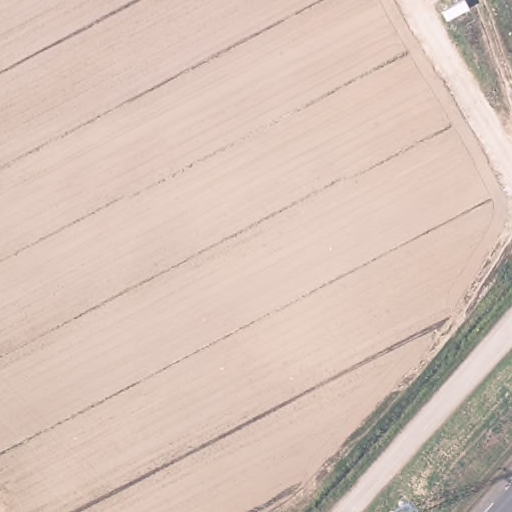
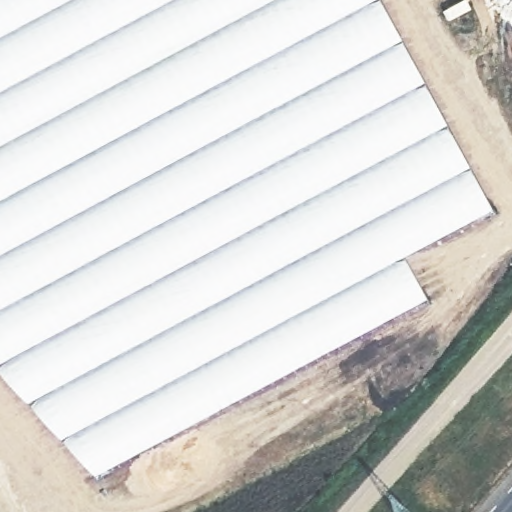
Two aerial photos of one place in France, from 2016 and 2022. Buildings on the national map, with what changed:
new [(493,206),(406,253),(428,296),(93,475),(0,375),(0,0),(382,0),(493,206)]

